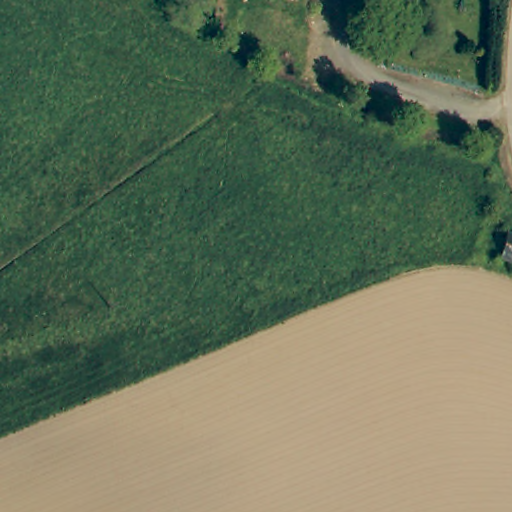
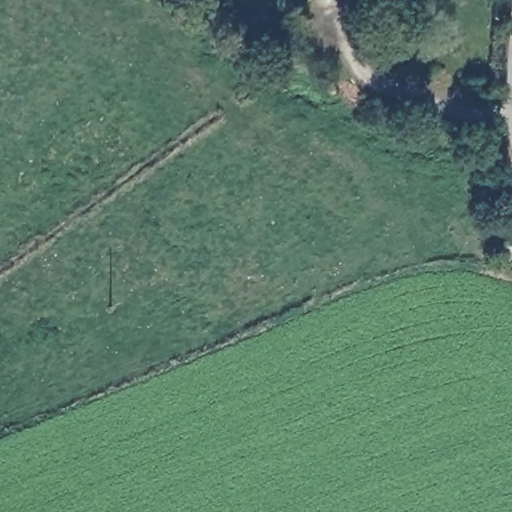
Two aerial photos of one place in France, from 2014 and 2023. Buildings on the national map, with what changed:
unchanged [(512,234),(512,262),(503,259),(504,247),(496,245),(499,230),(512,234)]

